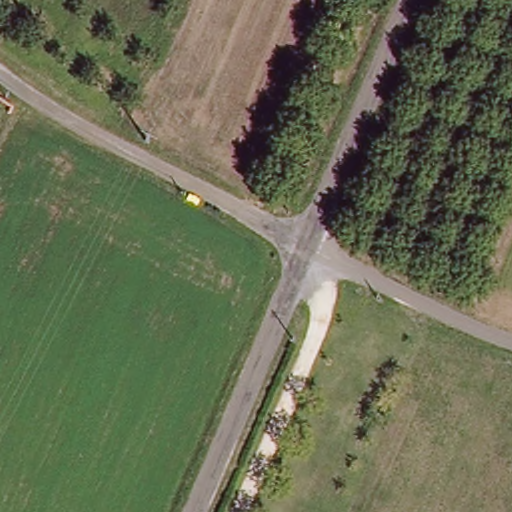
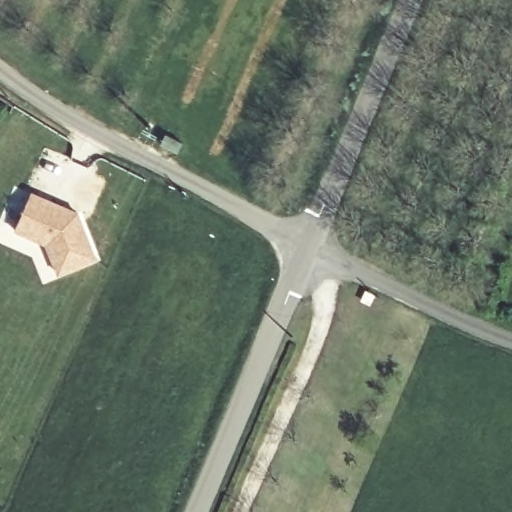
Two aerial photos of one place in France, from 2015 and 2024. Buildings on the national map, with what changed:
new [(80,211),(100,259),(59,276),(46,245),(14,231),(33,191),(80,211)]

